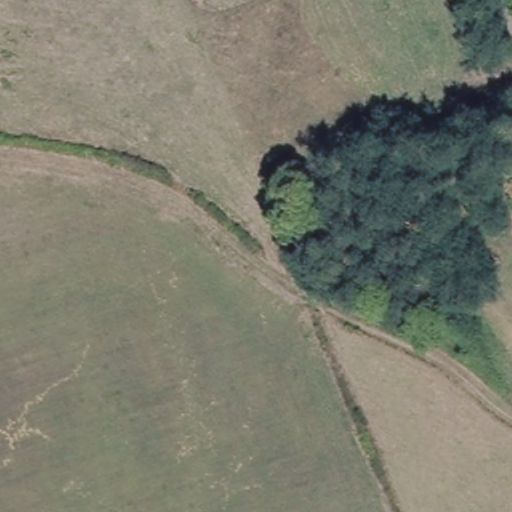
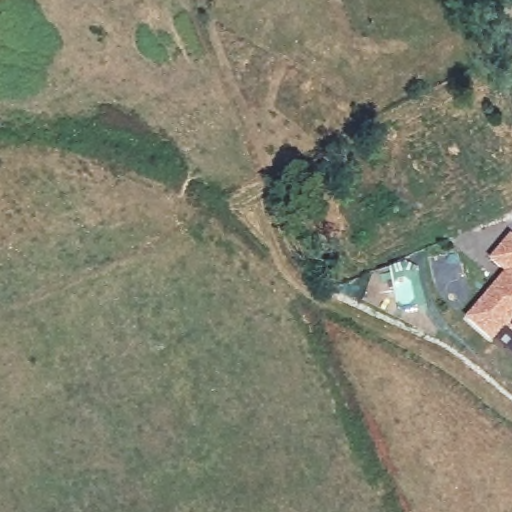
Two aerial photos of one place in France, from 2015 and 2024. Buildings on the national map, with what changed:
new [(506,328),(493,343),(469,324),(508,276),(493,263),(511,241),(512,242),(512,333),(506,328)]

